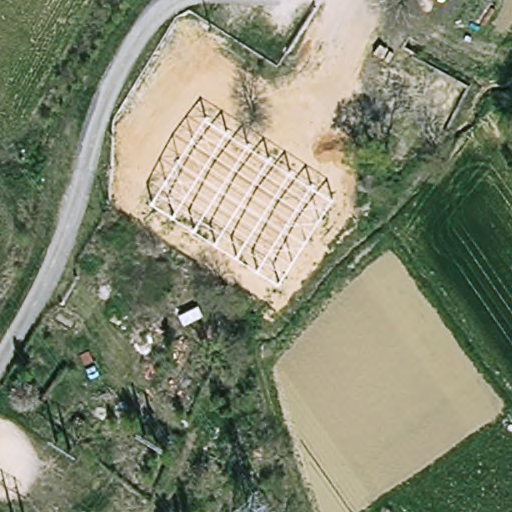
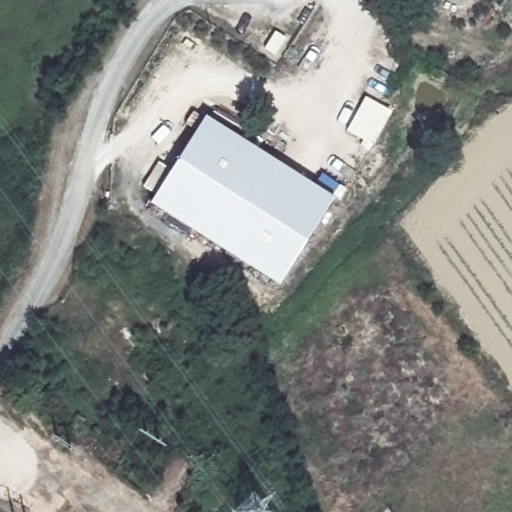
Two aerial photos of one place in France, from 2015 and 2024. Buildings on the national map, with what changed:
new [(334,199),(280,285),(152,202),(207,117),(334,199)]

